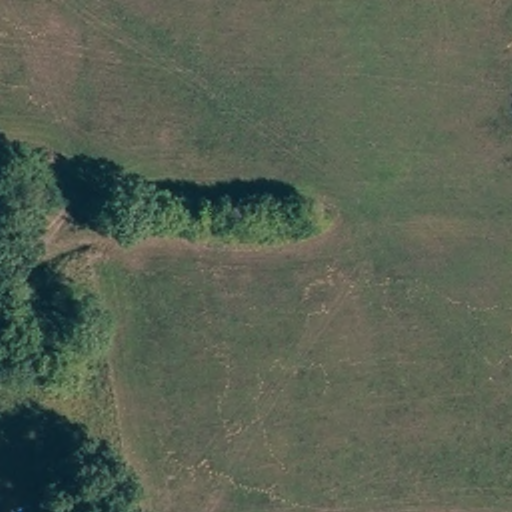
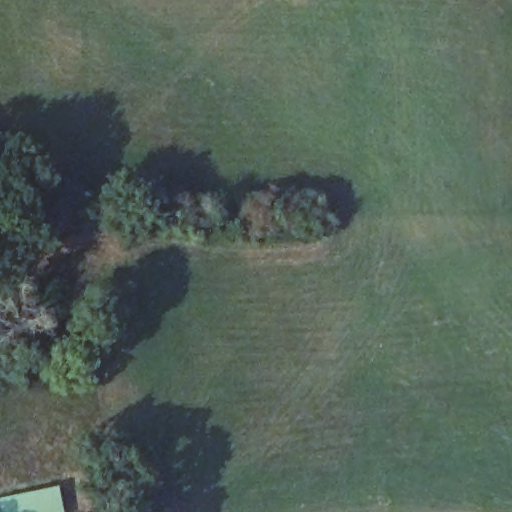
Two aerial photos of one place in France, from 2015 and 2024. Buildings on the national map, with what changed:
new [(56,486),(62,512),(0,512),(0,498),(56,486)]

